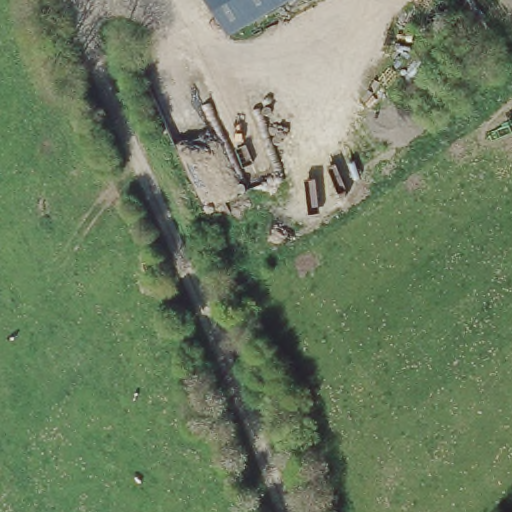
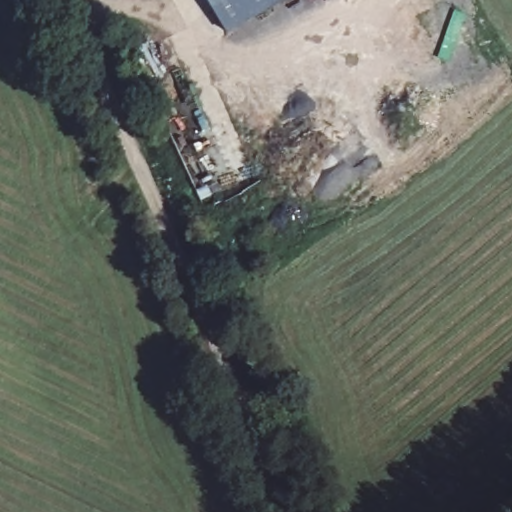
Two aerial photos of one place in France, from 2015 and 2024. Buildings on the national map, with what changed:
unchanged [(210,0),(276,0),(230,31),(210,0)]

